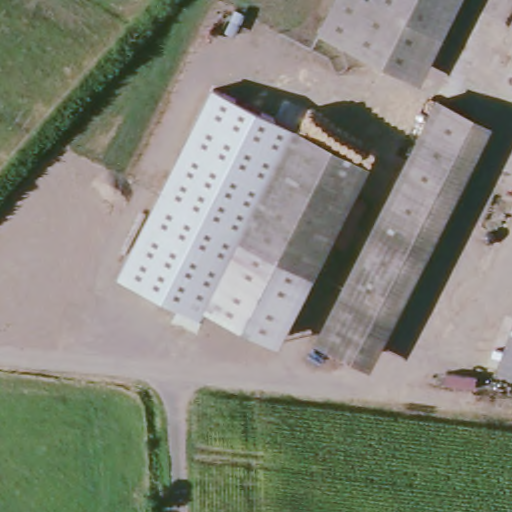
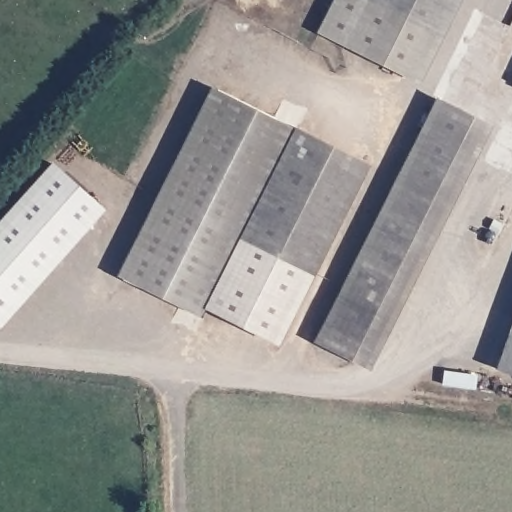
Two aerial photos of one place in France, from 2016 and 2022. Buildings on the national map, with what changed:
unchanged [(367,0),(390,11),(395,0),(461,0),(422,81),(318,34),(335,0),(367,0)]
unchanged [(367,0),(395,0),(390,11),(367,0)]
unchanged [(512,74),(512,78),(511,77),(512,74)]
unchanged [(194,312),(118,275),(212,86),(288,122),(232,234),(199,303),(194,312)]
unchanged [(436,98),(472,117),(352,360),(316,340),(436,98)]
unchanged [(490,126),(370,367),(352,360),(472,117),(490,126)]
unchanged [(232,234),(288,122),(366,165),(309,275),(232,234)]
new [(52,162),(104,209),(0,327),(0,220),(52,162)]
unchanged [(309,275),(275,344),(199,303),(232,234),(309,275)]
unchanged [(512,337),(512,373),(501,368),(512,337)]

